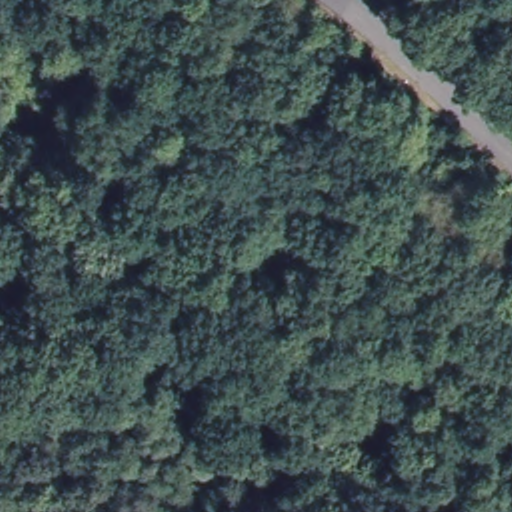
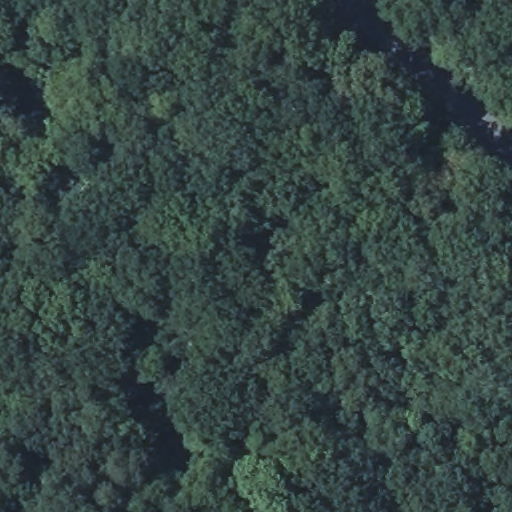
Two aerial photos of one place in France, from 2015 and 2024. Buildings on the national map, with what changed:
[]

